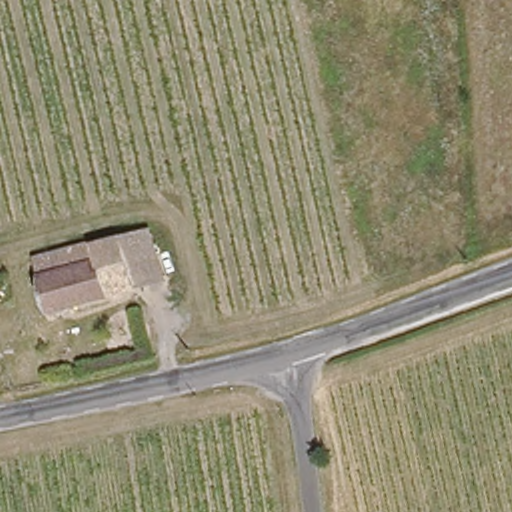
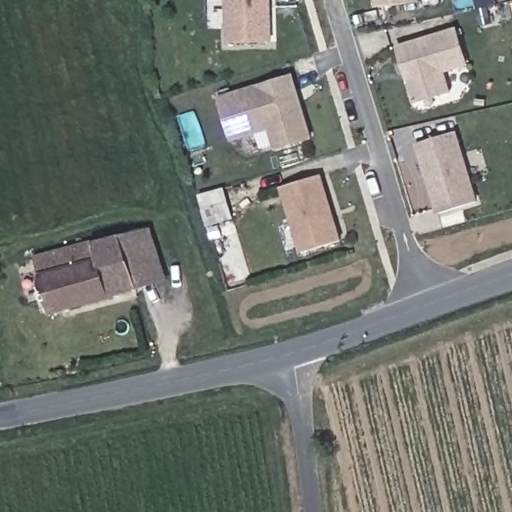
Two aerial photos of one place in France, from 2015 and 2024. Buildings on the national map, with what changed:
new [(274,43),(232,44),(231,0),(273,0),(274,43)]
new [(423,3),(381,7),(380,0),(423,0),(423,3)]
new [(456,29),(467,64),(443,71),(449,91),(414,102),(398,46),(456,29)]
new [(295,79),(313,139),(279,150),(274,130),(236,141),(224,102),(295,79)]
new [(460,134),(482,204),(444,215),(422,146),(460,134)]
new [(285,188),(324,176),(344,241),(306,254),(285,188)]
unchanged [(126,233),(153,226),(169,282),(141,289),(126,233)]
unchanged [(141,289),(52,314),(36,258),(126,233),(141,289)]

